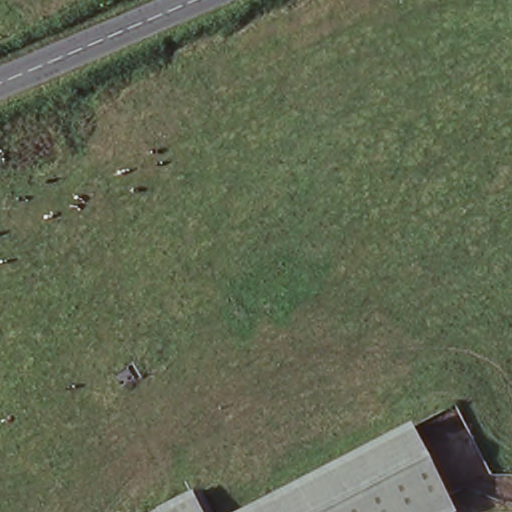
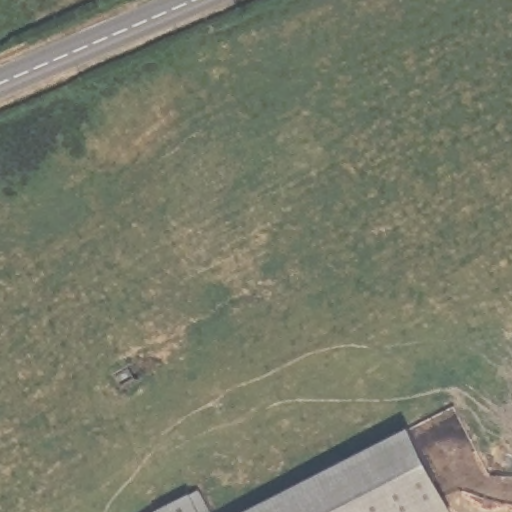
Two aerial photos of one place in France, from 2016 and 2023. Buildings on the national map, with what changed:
unchanged [(247,512),(410,428),(453,512),(247,512)]
unchanged [(202,512),(157,512),(193,495),(202,512)]

